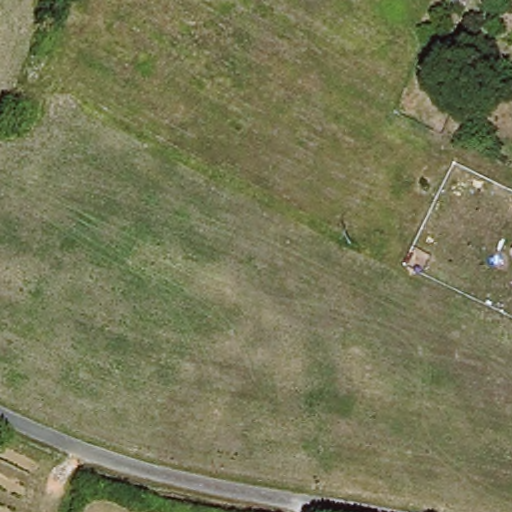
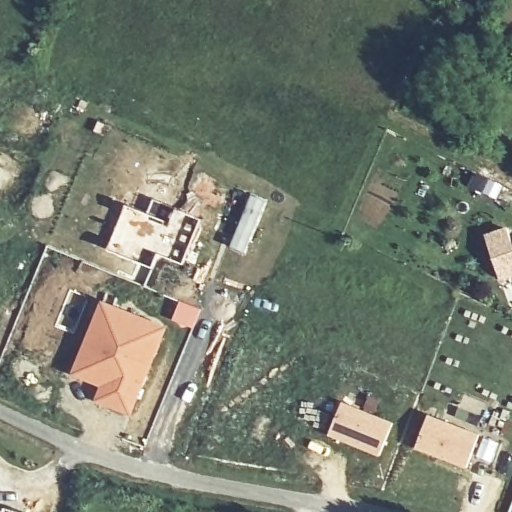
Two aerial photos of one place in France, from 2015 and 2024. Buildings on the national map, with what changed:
new [(16,205),(0,198),(0,144),(36,161),(16,205)]
new [(125,204),(170,221),(176,209),(200,220),(182,265),(157,255),(152,267),(107,249),(125,204)]
unchanged [(511,252),(512,251),(512,253),(511,252)]
new [(102,302),(164,328),(130,414),(94,402),(101,383),(74,373),(102,302)]
new [(342,401),(393,423),(378,456),(330,434),(342,401)]
new [(415,448),(428,414),(480,434),(466,467),(415,448)]

